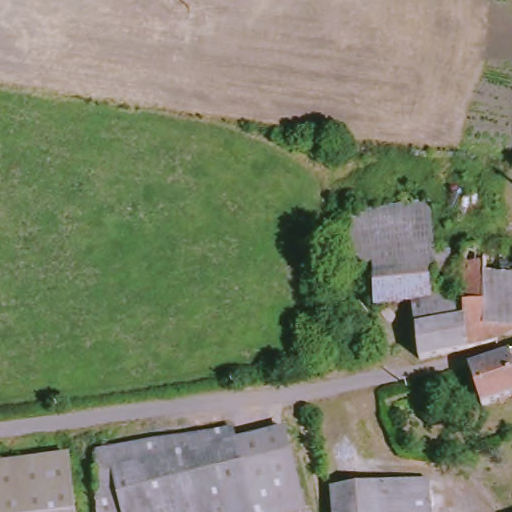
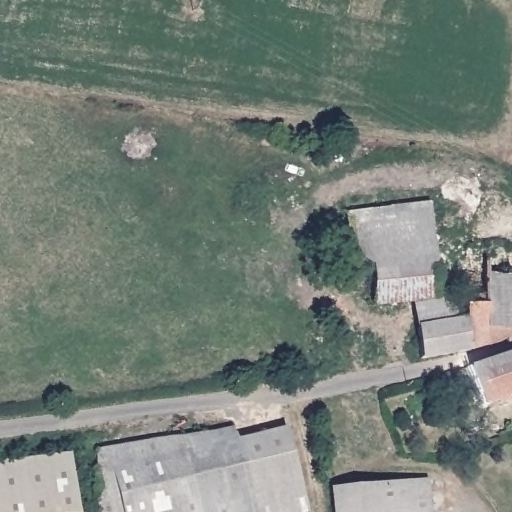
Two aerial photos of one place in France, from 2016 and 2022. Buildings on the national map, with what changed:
unchanged [(436,205),(439,251),(447,251),(448,262),(437,265),(437,257),(376,264),(356,265),(351,212),(436,205)]
unchanged [(420,331),(459,328),(458,323),(469,323),(468,285),(468,250),(512,249),(512,332),(499,332),(501,345),(423,363),(420,331)]
unchanged [(437,257),(437,265),(439,297),(418,298),(418,304),(377,307),(376,266),(376,264),(437,257)]
unchanged [(418,304),(418,298),(439,297),(456,295),(458,323),(459,328),(420,331),(418,304)]
unchanged [(475,368),(512,356),(512,399),(486,407),(475,368)]
unchanged [(250,422),(253,434),(265,512),(104,512),(101,440),(250,422)]
unchanged [(305,426),(316,512),(265,512),(253,434),(290,429),(305,426)]
unchanged [(76,512),(0,512),(0,466),(72,460),(76,512)]
unchanged [(409,483),(412,512),(319,512),(317,491),(326,490),(409,483)]

